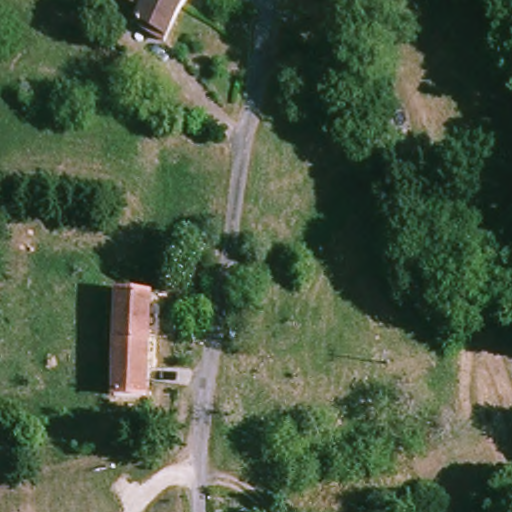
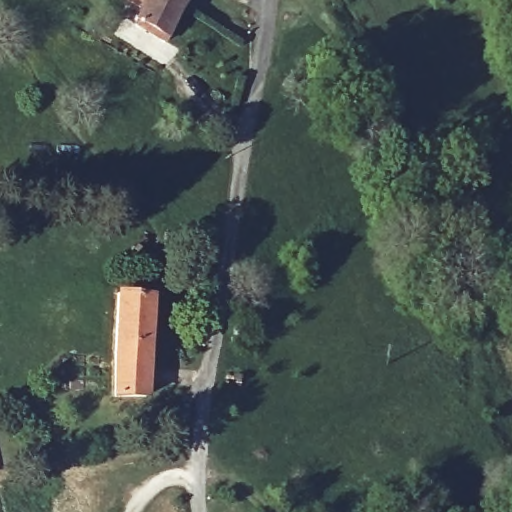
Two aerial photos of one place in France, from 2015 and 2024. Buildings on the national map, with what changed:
unchanged [(137,22),(147,0),(185,0),(167,37),(137,22)]
unchanged [(155,292),(149,392),(118,391),(124,290),(155,292)]

